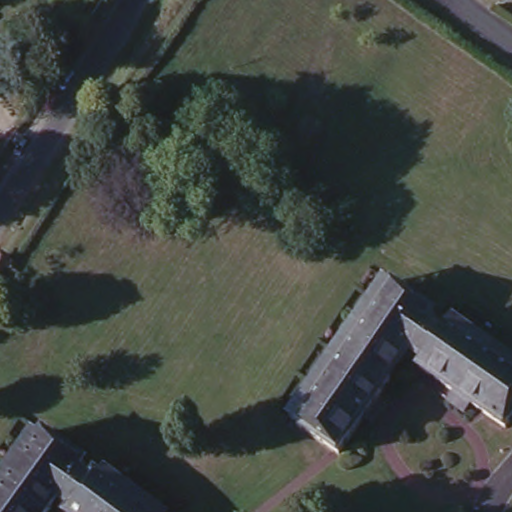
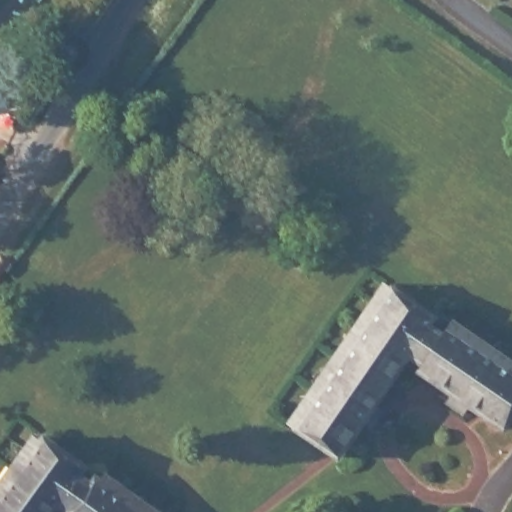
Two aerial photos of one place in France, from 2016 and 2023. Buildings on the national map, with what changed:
unchanged [(287,420),(384,276),(390,280),(292,423),(287,420)]
unchanged [(357,415),(357,416),(334,450),(292,423),(390,280),(431,310),(425,318),(439,327),(443,321),(447,315),(512,358),(512,403),(498,422),(463,398),(457,407),(443,396),(448,388),(399,355),(369,400),(377,406),(366,422),(357,415)]
unchanged [(32,432),(74,464),(69,472),(79,479),(84,472),(91,476),(95,471),(153,512),(51,512),(42,506),(38,512),(0,512),(0,477),(28,437),(32,432)]
unchanged [(28,437),(0,477),(0,466),(23,433),(28,437)]

